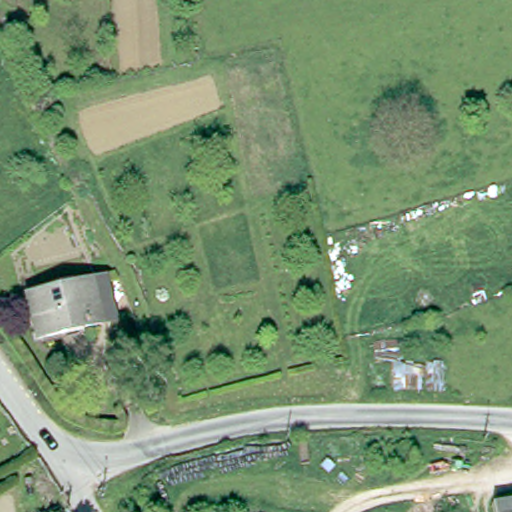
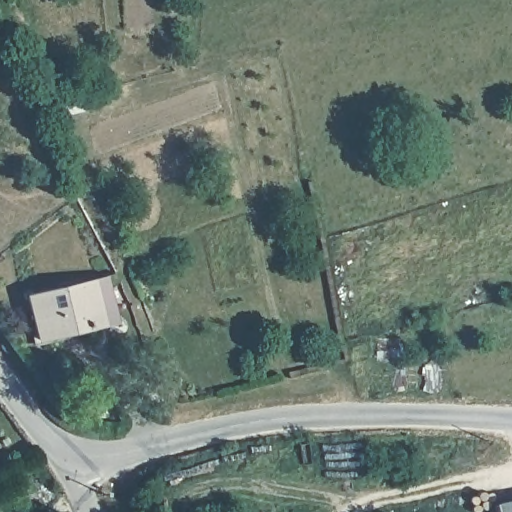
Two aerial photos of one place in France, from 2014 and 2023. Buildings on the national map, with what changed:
unchanged [(27,297),(90,280),(90,281),(102,277),(113,317),(100,321),(37,337),(27,297)]
unchanged [(499,512),(497,500),(512,497),(512,512),(499,512)]

